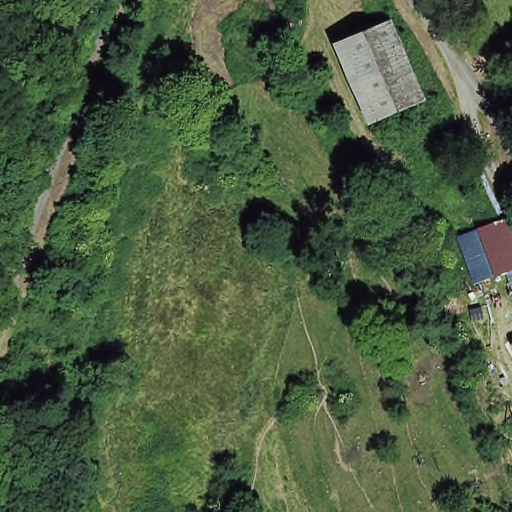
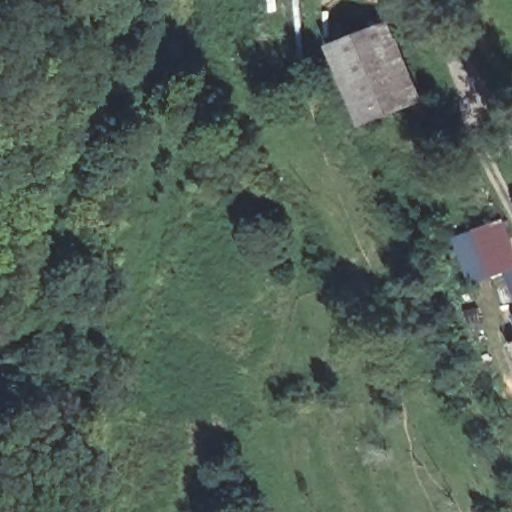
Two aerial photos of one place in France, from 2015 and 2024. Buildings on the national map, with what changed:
unchanged [(424,92),(376,117),(337,39),(389,17),(424,92)]
unchanged [(512,264),(498,271),(469,215),(497,202),(512,234),(512,264)]

